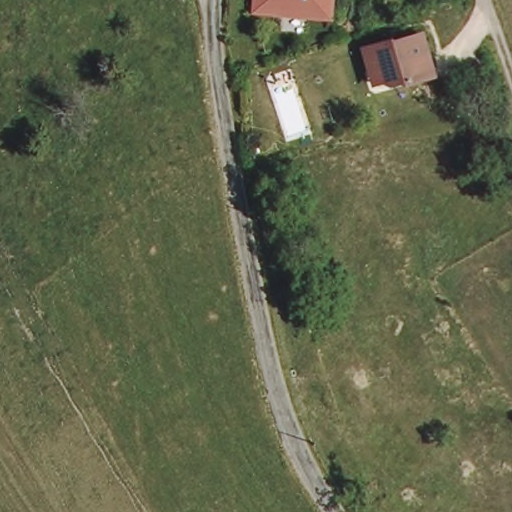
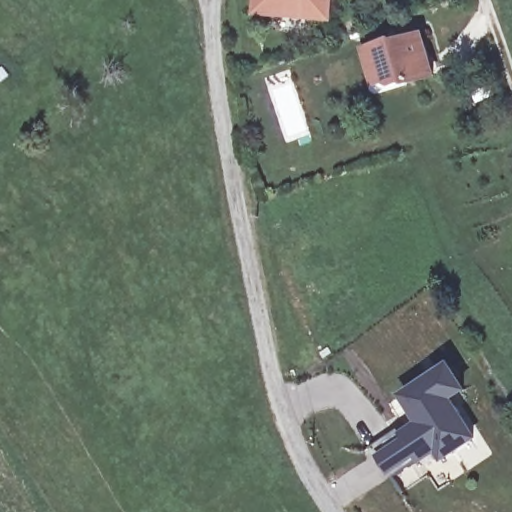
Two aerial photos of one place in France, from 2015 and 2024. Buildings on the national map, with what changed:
unchanged [(249,21),(249,0),(330,0),(330,21),(249,21)]
unchanged [(367,69),(361,47),(387,40),(387,41),(420,32),(431,73),(405,80),(404,78),(388,82),(381,79),(371,82),(367,69)]
new [(433,438),(414,450),(390,465),(370,433),(395,417),(398,423),(417,412),(400,384),(446,355),(460,378),(445,387),(471,427),(448,442),(439,447),(433,438)]

